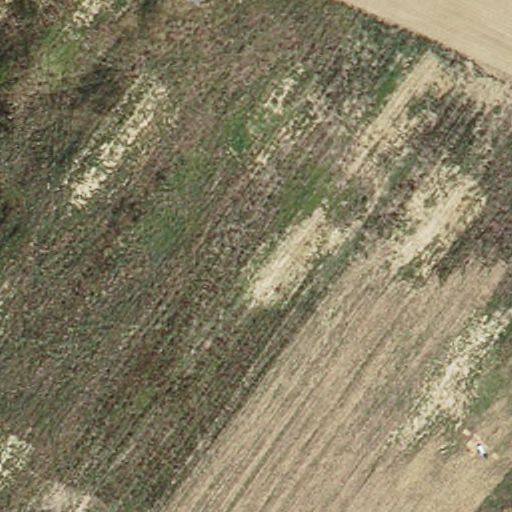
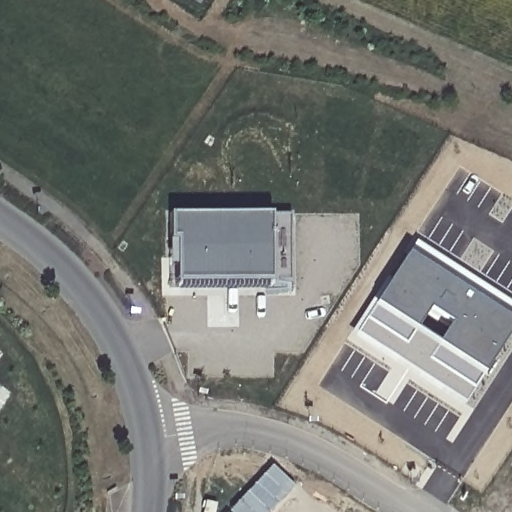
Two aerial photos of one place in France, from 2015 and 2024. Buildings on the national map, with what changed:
new [(176,239),(170,239),(170,214),(271,215),(289,215),(290,282),(270,282),(177,282),(176,239)]
new [(376,303),(408,253),(512,321),(512,330),(484,373),(473,389),(466,402),(358,333),(366,319),(376,303)]

